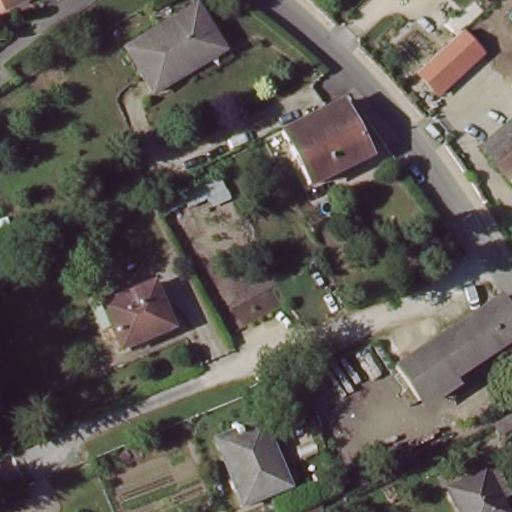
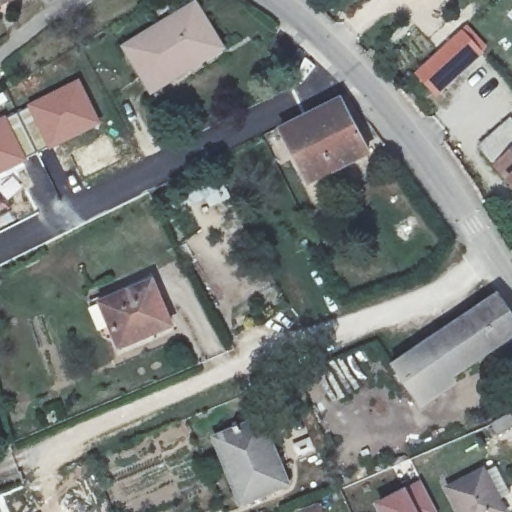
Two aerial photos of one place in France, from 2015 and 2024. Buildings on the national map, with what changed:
unchanged [(190,70),(153,92),(127,46),(197,5),(219,44),(223,51),(190,70)]
new [(458,28),(478,50),(433,90),(413,68),(458,28)]
new [(80,79),(101,124),(47,149),(27,105),(80,79)]
unchanged [(345,104),(370,154),(312,183),(288,133),(345,104)]
new [(27,105),(47,149),(28,160),(6,115),(27,105)]
new [(6,115),(28,160),(0,175),(0,118),(6,115)]
unchanged [(481,148),(511,121),(512,122),(512,184),(481,148)]
unchanged [(216,212),(210,203),(178,223),(171,207),(229,171),(243,199),(216,212)]
unchanged [(94,302),(103,298),(107,295),(111,304),(157,284),(174,329),(151,338),(149,334),(123,344),(119,334),(109,339),(94,302)]
unchanged [(495,293),(512,318),(512,332),(447,377),(424,342),(495,293)]
unchanged [(452,384),(424,404),(395,362),(424,342),(447,377),(452,384)]
unchanged [(500,427),(512,422),(512,440),(509,442),(500,427)]
unchanged [(255,423),(273,468),(279,466),(287,486),(240,504),(214,438),(255,423)]
unchanged [(482,474),(488,484),(502,512),(459,512),(451,495),(448,490),(482,474)]
new [(421,479),(438,512),(377,512),(372,503),(421,479)]

